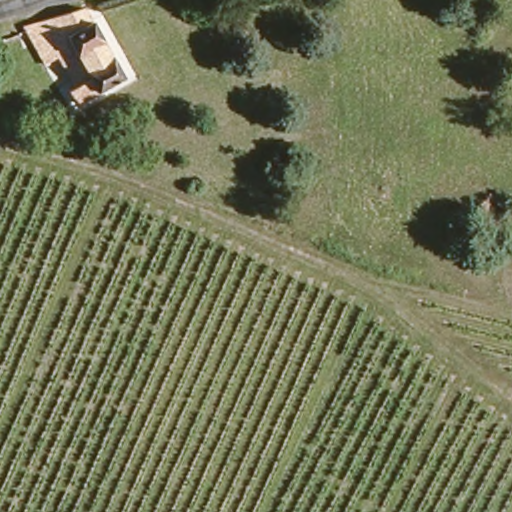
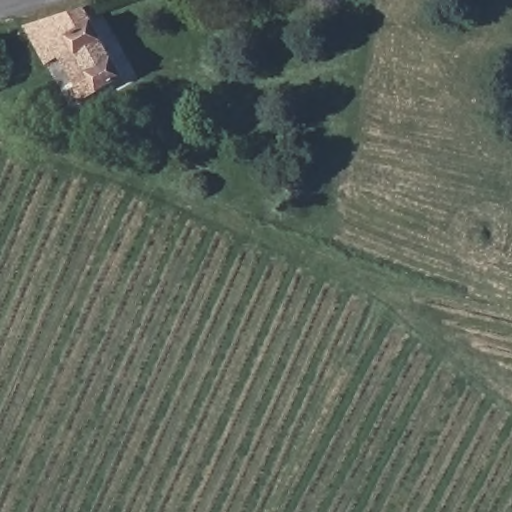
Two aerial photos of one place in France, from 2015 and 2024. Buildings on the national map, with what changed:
unchanged [(125,75),(78,104),(70,91),(77,86),(60,59),(45,66),(23,26),(83,8),(125,75)]

